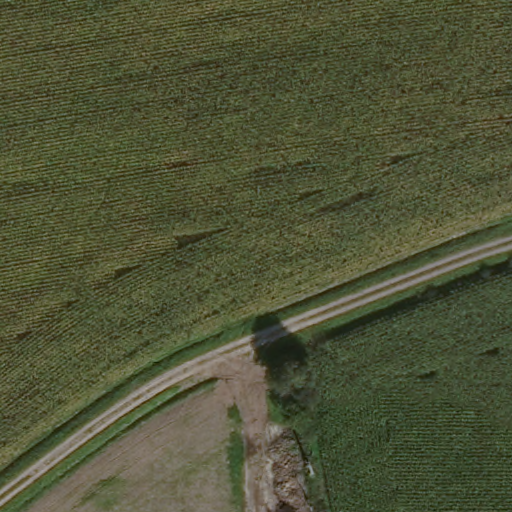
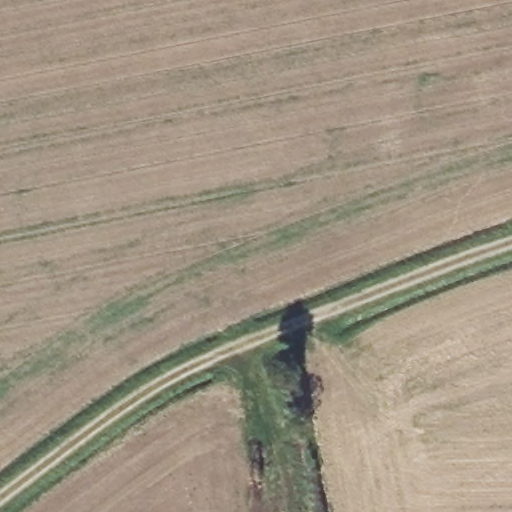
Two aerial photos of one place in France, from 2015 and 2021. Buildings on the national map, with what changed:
[]

